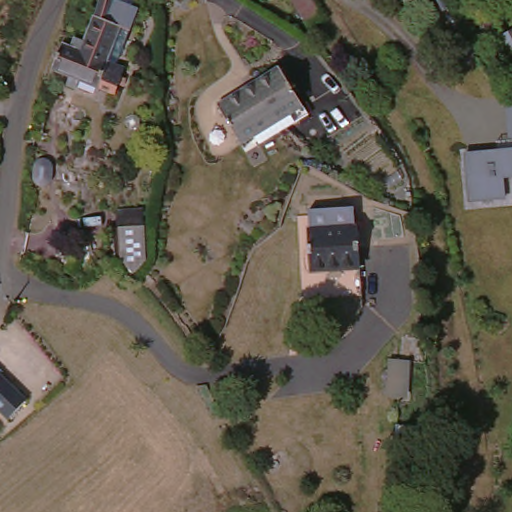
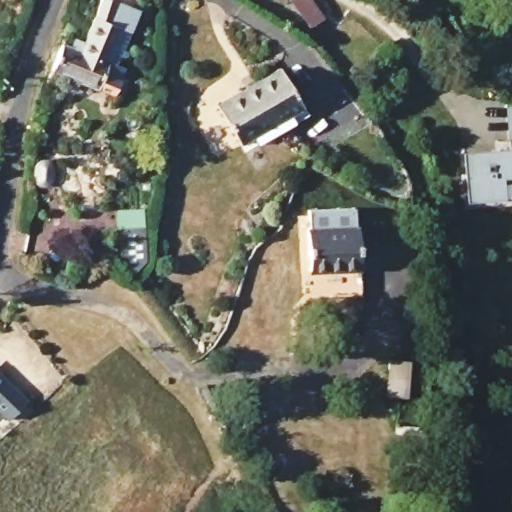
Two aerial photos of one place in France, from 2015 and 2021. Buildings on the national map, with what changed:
unchanged [(70,37),(86,41),(93,27),(100,0),(149,0),(148,9),(129,7),(123,35),(108,64),(104,63),(66,53),(70,37)]
unchanged [(330,22),(311,31),(291,0),(317,0),(330,22)]
unchanged [(484,52),(512,36),(512,91),(506,94),(484,52)]
unchanged [(66,53),(104,63),(108,64),(123,67),(116,95),(99,90),(48,77),(55,51),(66,53)]
unchanged [(248,133),(235,140),(210,95),(281,62),(303,104),(309,118),(289,125),(253,145),(248,133)]
unchanged [(506,103),(512,103),(512,139),(509,139),(506,103)]
unchanged [(504,197),(469,200),(464,152),(512,147),(512,177),(502,178),(504,197)]
unchanged [(304,248),(306,228),(351,232),(349,252),(351,252),(350,289),(299,284),(302,248),(304,248)]
unchanged [(145,252),(146,287),(131,296),(119,275),(119,252),(145,252)]
unchanged [(29,396),(11,414),(0,403),(0,365),(29,396)]

